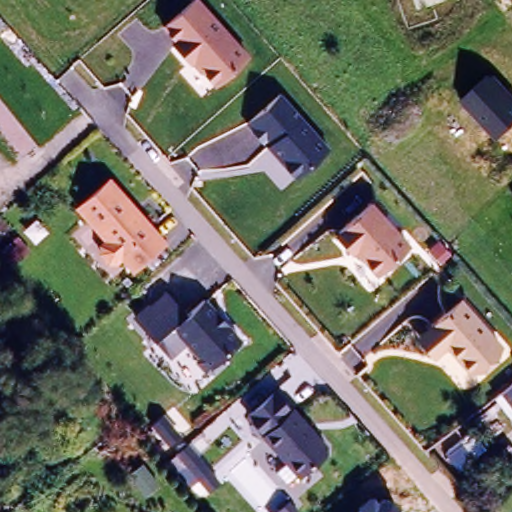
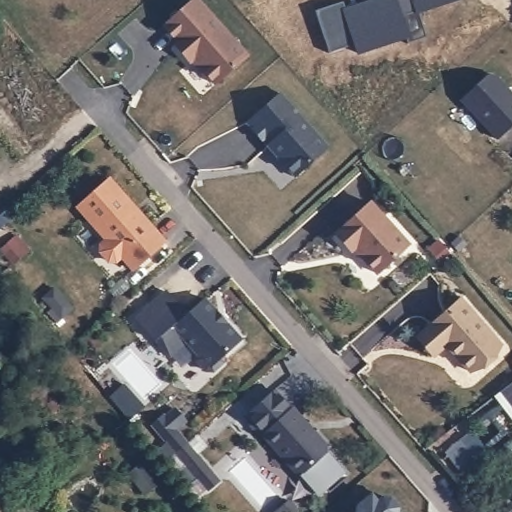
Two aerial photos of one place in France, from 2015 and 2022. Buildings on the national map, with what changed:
unchanged [(247,54),(211,86),(158,26),(190,0),(201,0),(247,54)]
new [(417,15),(415,11),(402,15),(410,40),(357,55),(353,43),(329,53),(316,11),(344,2),(346,9),(372,0),(463,0),(417,15)]
unchanged [(493,72),(512,92),(512,127),(498,140),(461,101),(493,72)]
unchanged [(329,146),(294,179),(246,123),(284,90),(329,146)]
unchanged [(107,177),(162,240),(131,268),(120,255),(114,260),(107,260),(99,250),(105,238),(75,205),(107,177)]
unchanged [(409,241),(374,279),(331,233),(371,200),(409,241)]
unchanged [(171,358),(132,315),(162,291),(184,313),(171,325),(187,343),(171,358)]
unchanged [(507,346),(474,380),(448,350),(432,360),(411,336),(461,295),(507,346)]
unchanged [(202,297),(215,312),(212,315),(219,323),(222,320),(238,338),(222,353),(221,360),(211,369),(204,369),(195,359),(195,352),(171,325),(202,297)]
unchanged [(497,394),(512,382),(512,413),(497,394)]
unchanged [(272,395),(289,414),(291,412),(302,425),(301,427),(310,437),(314,438),(324,449),(324,456),(297,480),(260,439),(262,437),(246,419),(272,395)]
unchanged [(374,494),(381,499),(389,498),(399,508),(398,512),(356,512),(355,505),(374,494)]

